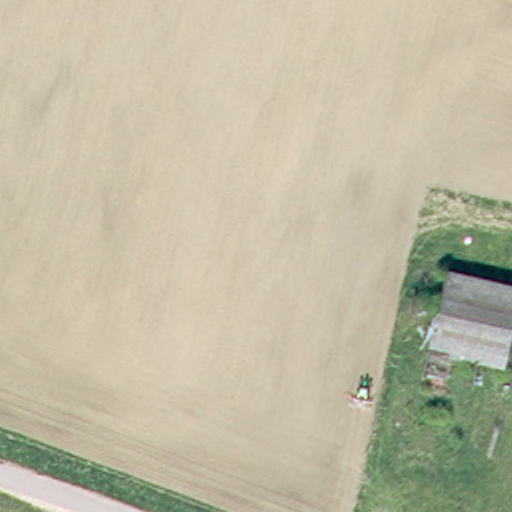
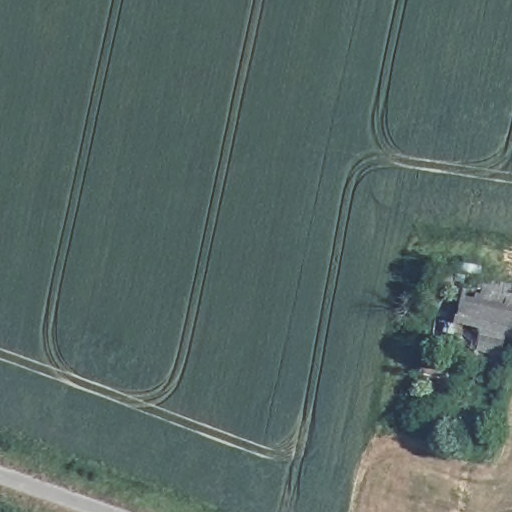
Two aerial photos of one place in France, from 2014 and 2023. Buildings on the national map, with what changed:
unchanged [(431,348),(448,272),(512,289),(512,334),(505,367),(482,361),(431,348)]

